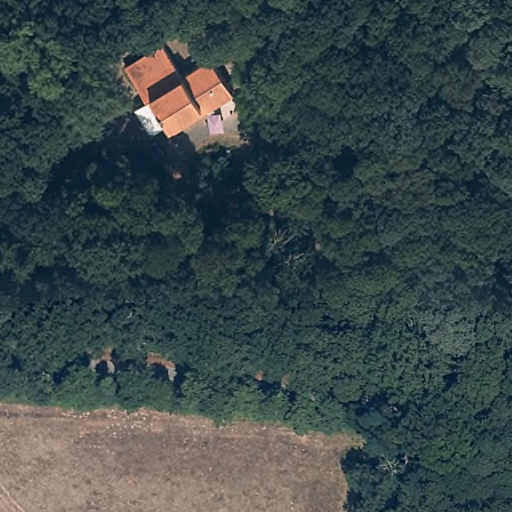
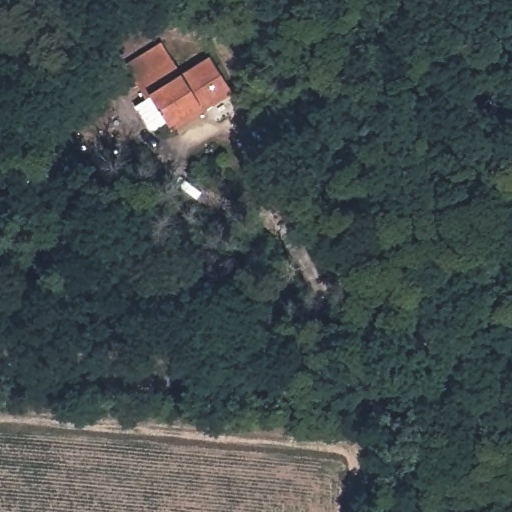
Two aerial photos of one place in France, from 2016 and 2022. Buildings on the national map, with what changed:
unchanged [(132,87),(121,70),(164,39),(177,58),(132,87)]
unchanged [(177,58),(187,72),(214,54),(236,86),(172,131),(167,124),(147,137),(130,112),(144,103),(132,87),(177,58)]

